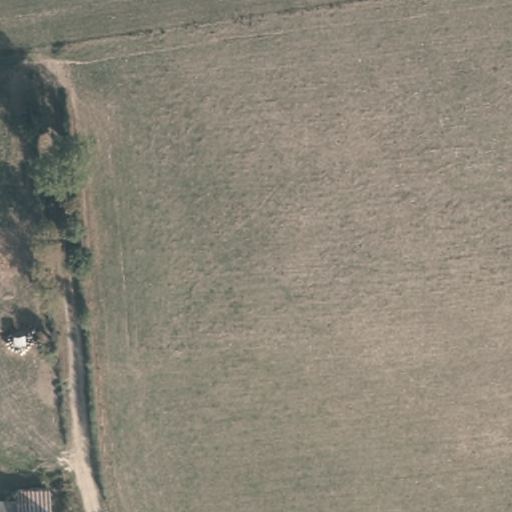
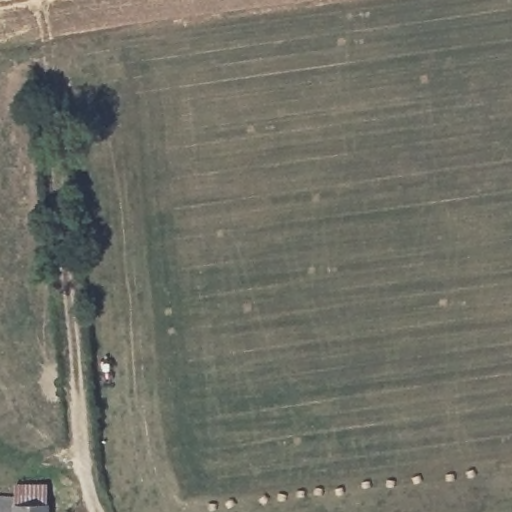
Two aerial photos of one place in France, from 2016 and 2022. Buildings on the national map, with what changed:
unchanged [(14,494),(14,512),(0,512),(0,493),(14,494)]
unchanged [(14,494),(21,495),(21,500),(51,501),(51,512),(14,512),(14,494)]

